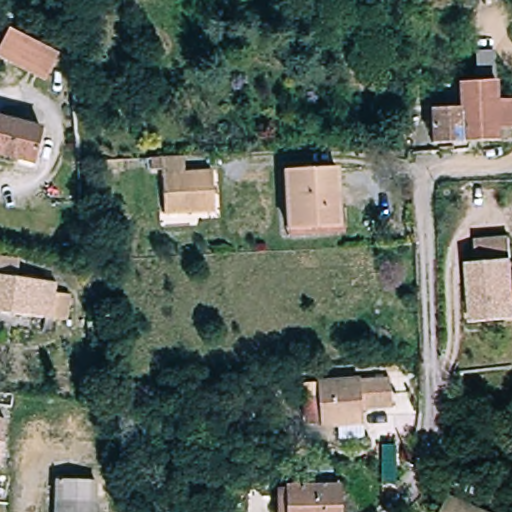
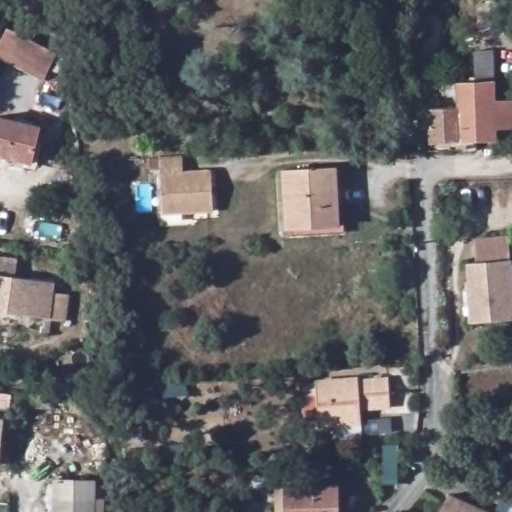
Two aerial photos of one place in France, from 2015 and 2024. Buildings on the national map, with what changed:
unchanged [(57,50),(46,74),(0,54),(0,31),(3,32),(7,24),(57,50)]
unchanged [(512,123),(512,149),(474,151),(456,151),(456,141),(428,142),(428,107),(440,107),(440,102),(440,80),(457,79),(457,73),(474,72),(475,48),(493,49),(494,77),(490,77),(490,98),(512,98),(512,123)]
unchanged [(42,133),(32,170),(0,163),(0,122),(42,133)]
unchanged [(185,156),(186,173),(213,171),(216,213),(165,216),(162,158),(185,156)]
unchanged [(338,168),(341,224),(289,228),(285,172),(338,168)]
unchanged [(472,259),(481,259),(480,237),(512,236),(512,260),(512,318),(475,318),(472,259)]
unchanged [(1,269),(0,272),(0,269),(1,269)]
unchanged [(54,293),(49,328),(0,322),(0,286),(54,293)]
unchanged [(338,443),(337,433),(319,434),(318,379),(391,377),(391,406),(362,407),(363,431),(363,442),(338,443)]
unchanged [(7,419),(2,464),(0,464),(0,419),(7,419)]
unchanged [(54,480),(95,481),(94,512),(53,512),(54,480)]
unchanged [(335,485),(336,512),(282,512),(282,487),(335,485)]
unchanged [(455,496),(491,512),(448,512),(455,496)]

